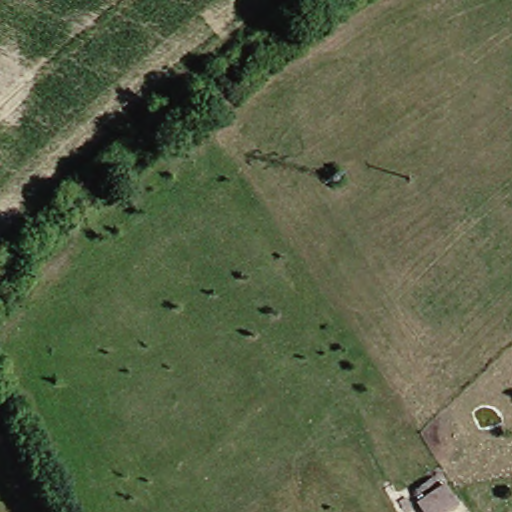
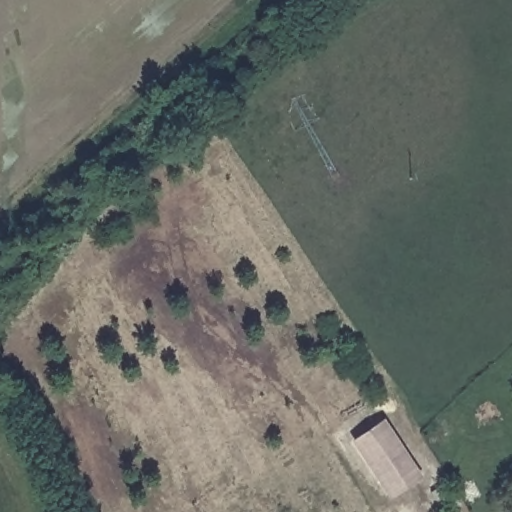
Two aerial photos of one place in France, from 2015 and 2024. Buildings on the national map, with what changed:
new [(383,420),(422,478),(389,500),(352,441),(383,420)]
unchanged [(440,512),(429,512),(418,497),(449,479),(461,501),(440,512)]

